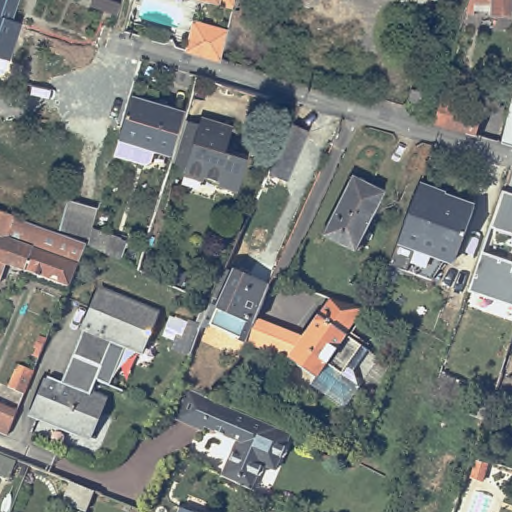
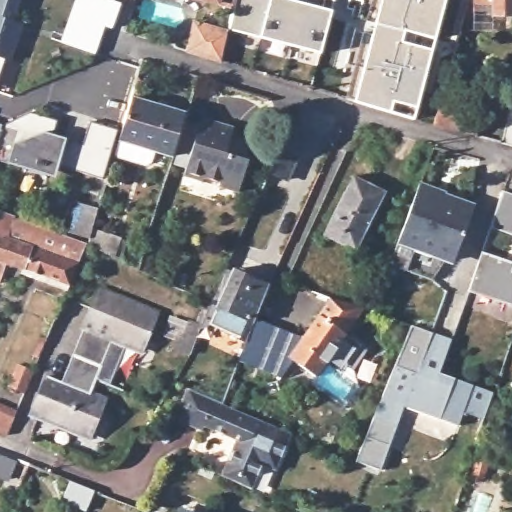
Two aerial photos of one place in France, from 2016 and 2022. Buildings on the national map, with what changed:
unchanged [(22,0),(11,31),(20,33),(14,51),(8,69),(4,83),(0,82),(0,0),(22,0)]
demolished [(102,0),(111,0),(121,3),(117,17),(98,11),(102,0)]
unchanged [(209,0),(207,0),(233,0),(231,7),(209,0)]
new [(226,29),(231,7),(233,0),(291,0),(315,5),(318,0),(331,0),(325,9),(331,10),(320,54),(257,38),(226,29)]
new [(350,102),(376,0),(444,0),(412,119),(350,102)]
demolished [(421,0),(456,0),(453,9),(421,0)]
unchanged [(471,0),(512,0),(512,12),(468,10),(471,0)]
unchanged [(219,61),(186,51),(192,24),(225,32),(219,61)]
demolished [(416,108),(405,105),(410,89),(421,92),(416,108)]
demolished [(441,92),(455,96),(447,124),(433,120),(441,92)]
unchanged [(485,105),(477,133),(475,132),(455,127),(450,125),(447,124),(455,96),(485,105)]
unchanged [(125,139),(138,97),(190,115),(187,123),(176,156),(125,139)]
unchanged [(510,107),(512,108),(512,145),(502,142),(510,107)]
unchanged [(101,178),(50,162),(47,172),(7,162),(0,159),(0,123),(1,124),(30,111),(56,120),(54,130),(60,136),(82,142),(89,120),(116,128),(101,178)]
unchanged [(219,188),(220,184),(206,180),(205,184),(186,178),(189,170),(174,165),(176,156),(187,123),(202,128),(205,120),(236,131),(229,156),(250,163),(240,195),(219,188)]
unchanged [(268,167),(288,120),(305,128),(285,175),(268,167)]
unchanged [(323,233),(351,176),(383,192),(355,249),(323,233)]
unchanged [(388,265),(406,219),(420,185),(436,200),(445,204),(448,198),(475,208),(455,263),(446,259),(431,281),(388,265)]
unchanged [(501,189),(512,193),(512,233),(490,226),(501,189)]
unchanged [(93,239),(61,229),(70,199),(102,210),(96,228),(119,235),(111,256),(91,247),(93,239)]
unchanged [(2,209),(55,231),(36,278),(25,274),(29,267),(12,261),(5,281),(0,280),(0,215),(2,209)]
unchanged [(36,278),(55,231),(85,244),(67,290),(36,278)]
unchanged [(512,261),(512,305),(468,290),(481,251),(512,261)]
unchanged [(260,317),(252,341),(249,340),(215,326),(215,319),(221,307),(214,303),(229,270),(235,273),(236,270),(240,272),(242,268),(254,272),(252,277),(271,285),(260,317)]
unchanged [(100,290),(156,312),(141,351),(114,340),(102,367),(74,356),(92,310),(100,290)]
unchanged [(306,333),(333,298),(367,306),(347,333),(362,344),(341,372),(326,360),(316,374),(290,354),(306,333)]
unchanged [(290,354),(252,341),(260,317),(306,333),(290,354)]
unchanged [(189,352),(170,346),(175,334),(181,337),(186,324),(195,327),(198,328),(189,352)]
new [(440,371),(492,391),(481,420),(461,412),(456,426),(401,406),(376,469),(352,461),(411,325),(450,338),(440,371)]
unchanged [(341,372),(362,344),(368,348),(360,360),(360,387),(347,403),(313,378),(316,374),(326,360),(341,372)]
unchanged [(49,378),(63,383),(74,356),(102,367),(98,380),(92,395),(106,400),(91,439),(34,416),(49,378)]
unchanged [(14,366),(30,372),(22,394),(5,388),(14,366)]
unchanged [(220,473),(224,465),(235,439),(230,436),(202,424),(200,429),(171,416),(184,387),(190,390),(207,399),(220,404),(290,433),(274,470),(260,464),(255,479),(251,487),(220,473)]
unchanged [(15,411),(10,425),(7,432),(0,429),(0,406),(15,411)]
unchanged [(60,502),(69,480),(92,490),(85,511),(60,502)]

